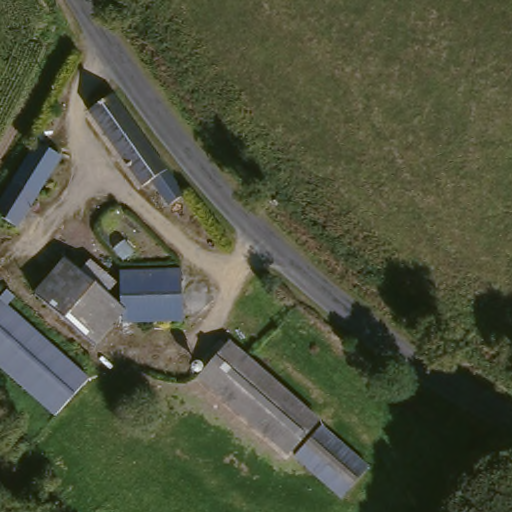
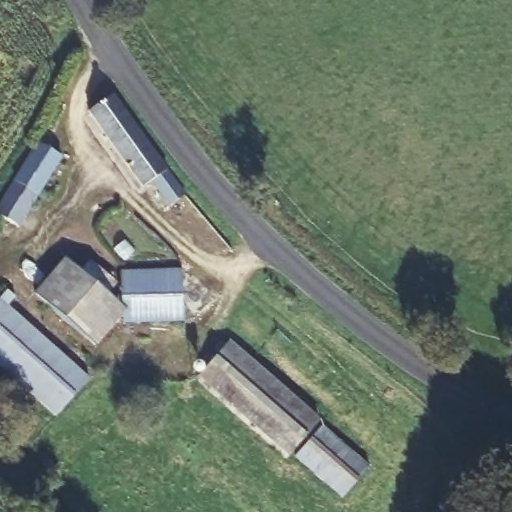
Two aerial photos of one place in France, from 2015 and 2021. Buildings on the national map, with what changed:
unchanged [(126,125),(174,189),(156,201),(139,177),(130,182),(74,108),(103,90),(126,125)]
unchanged [(39,153),(55,165),(12,233),(0,226),(0,197),(41,131),(49,135),(39,153)]
unchanged [(122,317),(94,348),(31,296),(61,259),(121,310),(126,313),(122,317)]
unchanged [(120,270),(180,271),(182,321),(121,321),(122,317),(126,313),(121,310),(120,270)]
unchanged [(88,381),(55,419),(0,372),(0,307),(16,321),(88,381)]
unchanged [(318,425),(286,460),(196,382),(229,347),(318,425)]
unchanged [(367,474),(340,503),(296,462),(321,433),(367,474)]

